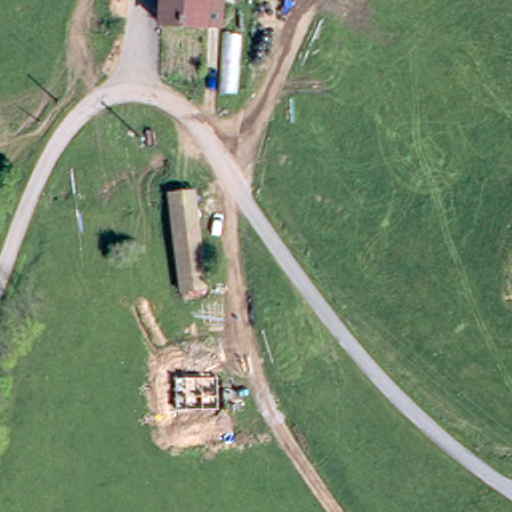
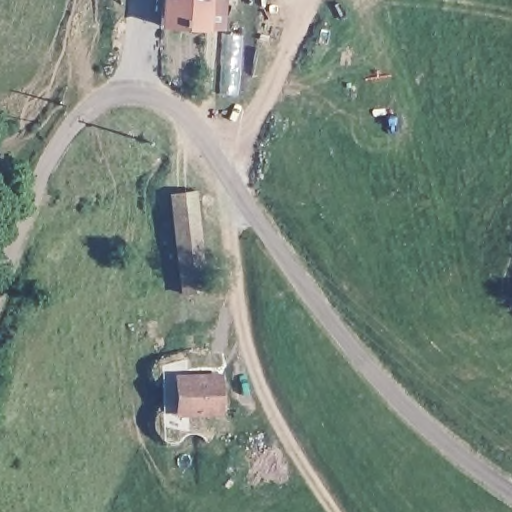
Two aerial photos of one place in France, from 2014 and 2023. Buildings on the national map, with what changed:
unchanged [(211,44),(195,43),(195,41),(152,36),(156,0),(200,0),(199,11),(215,13),(211,44)]
unchanged [(174,200),(196,196),(206,243),(215,291),(191,296),(180,234),(174,200)]
new [(222,415),(172,416),(172,372),(221,372),(222,415)]

